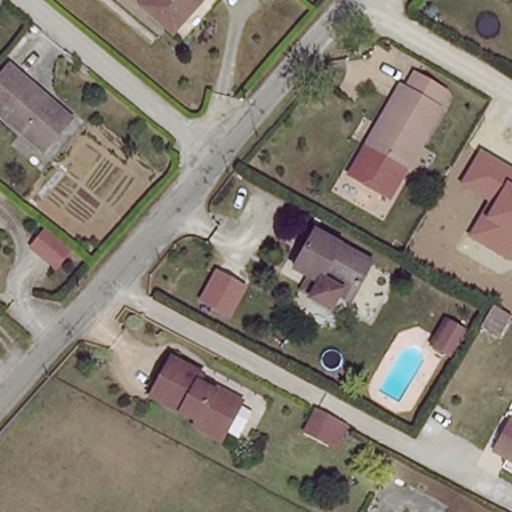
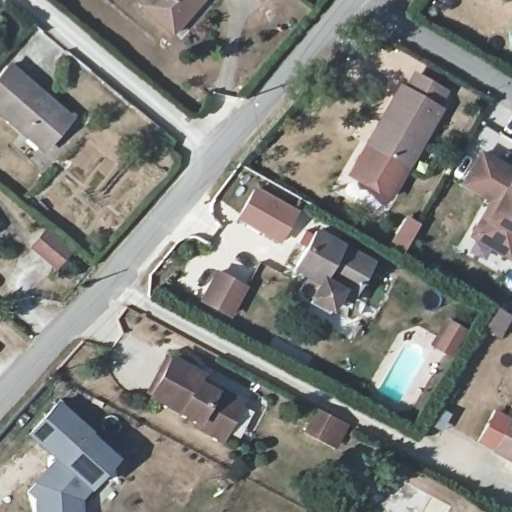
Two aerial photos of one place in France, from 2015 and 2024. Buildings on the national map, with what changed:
unchanged [(199,14),(195,10),(179,27),(150,0),(212,0),(199,14)]
unchanged [(0,84),(17,65),(78,116),(52,147),(28,129),(23,132),(0,113),(0,84)]
unchanged [(411,98),(419,85),(446,101),(435,115),(441,117),(407,169),(370,145),(404,94),(411,98)]
unchanged [(407,169),(388,197),(352,176),(370,145),(407,169)]
unchanged [(512,167),(512,259),(511,261),(470,237),(487,200),(462,184),(480,147),(512,167)]
unchanged [(298,263),(317,229),(375,259),(357,293),(347,289),(339,306),(307,290),(317,272),(298,263)]
unchanged [(247,287),(231,317),(195,301),(213,270),(247,287)]
unchanged [(449,320),(436,342),(421,332),(435,311),(449,320)]
unchanged [(157,397),(179,362),(212,378),(211,382),(249,403),(226,442),(203,430),(204,425),(157,397)]
new [(82,500),(82,512),(35,512),(35,495),(26,487),(55,458),(30,432),(63,401),(119,461),(82,500)]
unchanged [(351,425),(337,447),(309,430),(321,410),(351,425)]
unchanged [(496,452),(512,423),(512,460),(496,452)]

